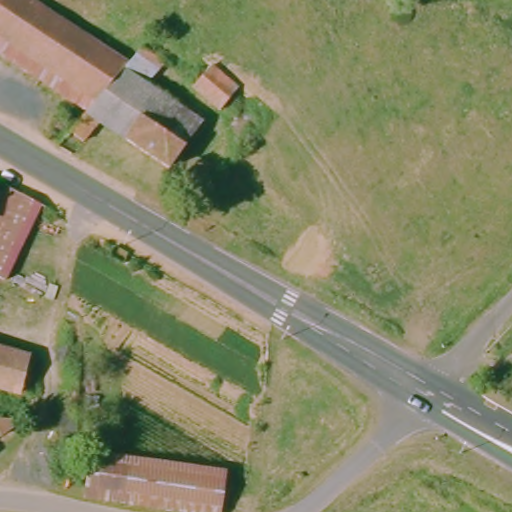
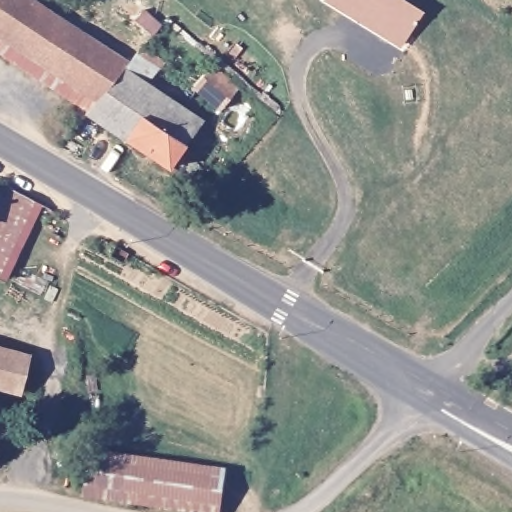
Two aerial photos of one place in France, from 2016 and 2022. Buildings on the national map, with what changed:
unchanged [(98,112),(0,40),(0,4),(3,0),(29,0),(130,73),(98,112)]
new [(401,48),(323,0),(399,0),(422,13),(401,48)]
unchanged [(71,143),(98,112),(130,73),(148,51),(169,68),(153,89),(205,123),(173,178),(103,133),(85,152),(71,143)]
unchanged [(224,67),(252,91),(229,120),(199,93),(224,67)]
unchanged [(0,217),(13,188),(43,206),(8,279),(0,275),(0,217)]
unchanged [(28,399),(0,391),(0,346),(39,356),(28,399)]
unchanged [(160,467),(156,508),(91,500),(96,458),(160,467)]
unchanged [(160,467),(233,473),(228,512),(189,512),(156,508),(160,467)]

